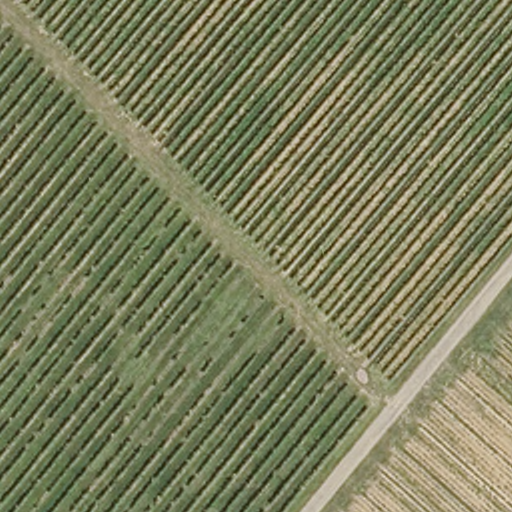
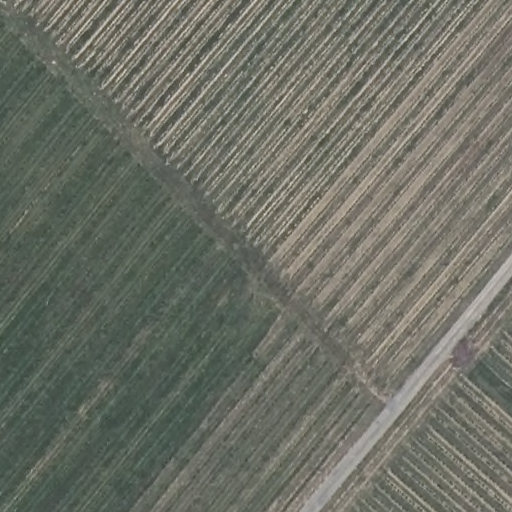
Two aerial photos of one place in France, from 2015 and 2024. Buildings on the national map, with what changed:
[]

